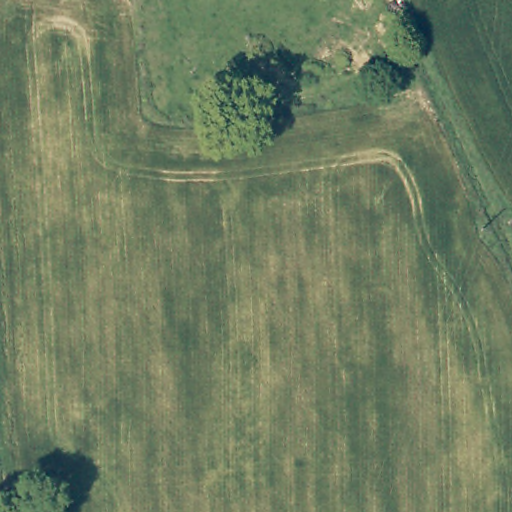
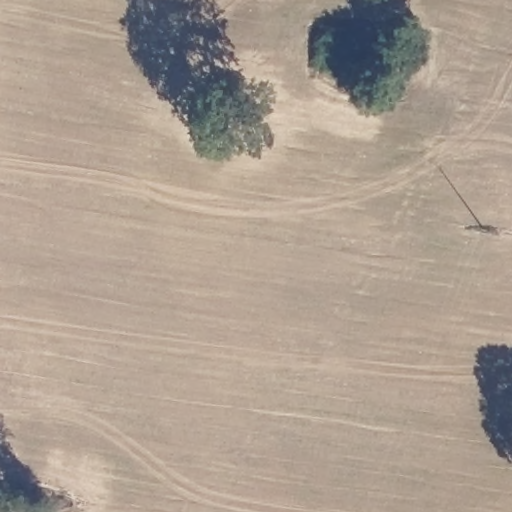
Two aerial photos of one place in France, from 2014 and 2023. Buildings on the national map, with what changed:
[]

